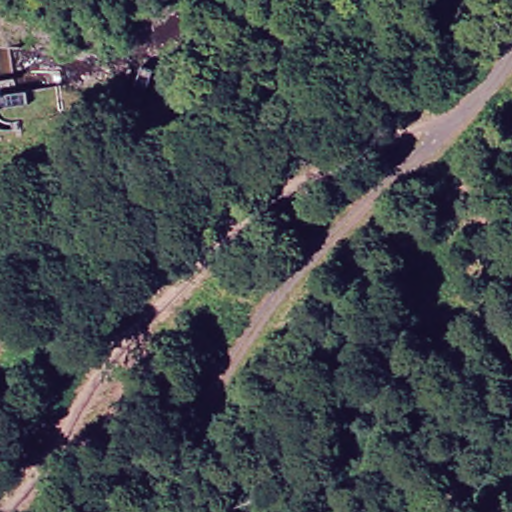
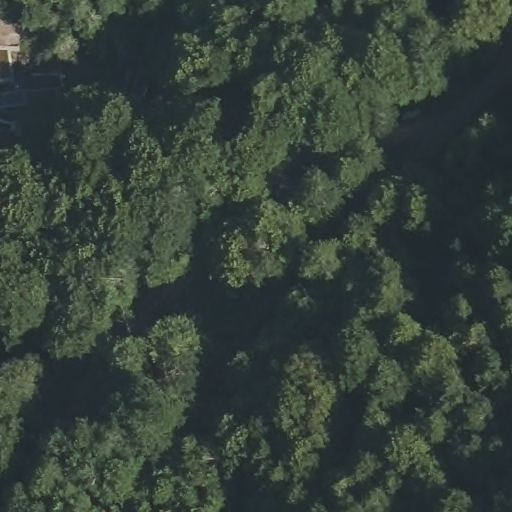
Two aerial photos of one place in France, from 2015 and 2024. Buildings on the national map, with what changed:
unchanged [(16,92),(26,91),(28,105),(0,109),(0,81),(15,79),(16,92)]

